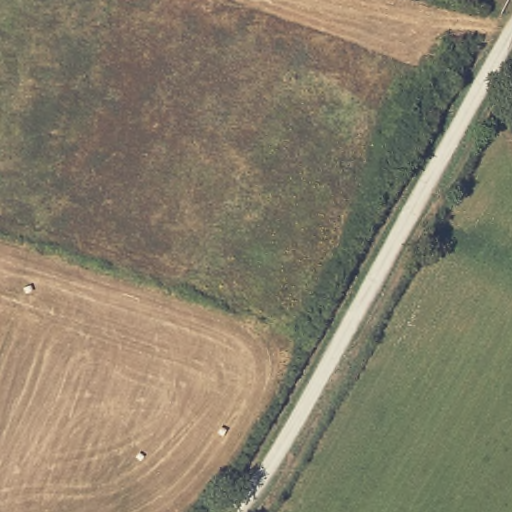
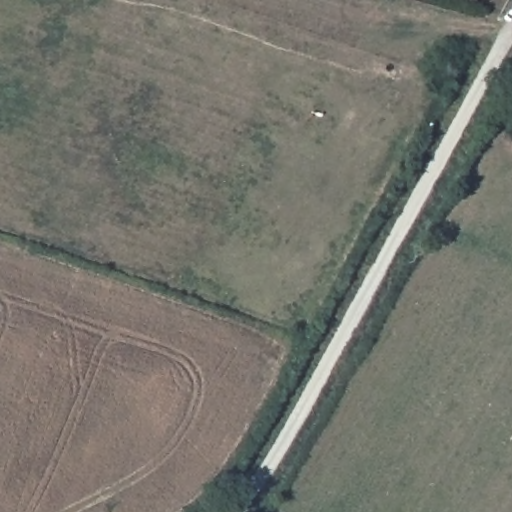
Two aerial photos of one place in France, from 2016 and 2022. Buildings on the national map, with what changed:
unchanged [(437,0),(477,0),(475,10),(437,0)]

